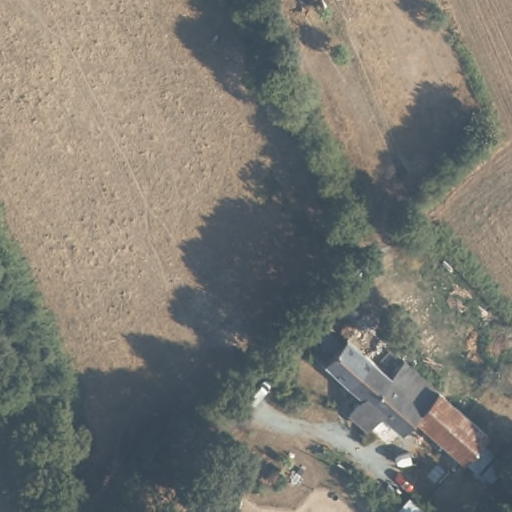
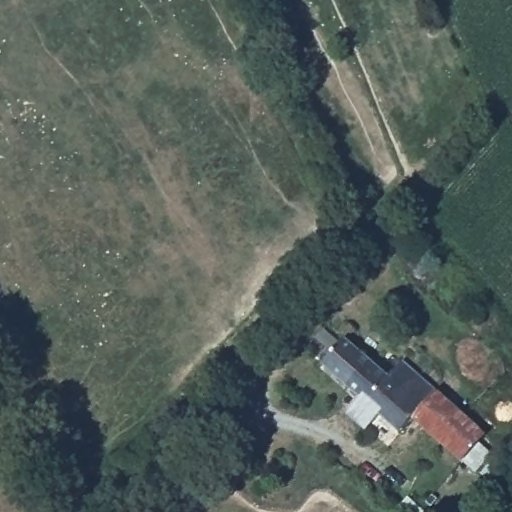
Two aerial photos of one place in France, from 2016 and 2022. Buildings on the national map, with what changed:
unchanged [(352,377),(330,354),(342,339),(330,327),(336,320),(348,332),(356,326),(347,317),(347,309),(352,307),(360,313),(361,312),(390,339),(352,377)]
unchanged [(409,359),(371,396),(382,406),(366,423),(349,406),(365,390),(352,377),(390,339),(409,359)]
unchanged [(420,369),(486,437),(461,462),(416,416),(406,427),(382,406),(371,396),(409,359),(420,369)]

